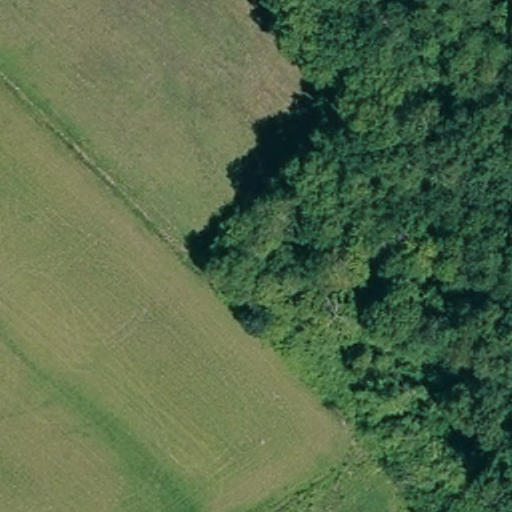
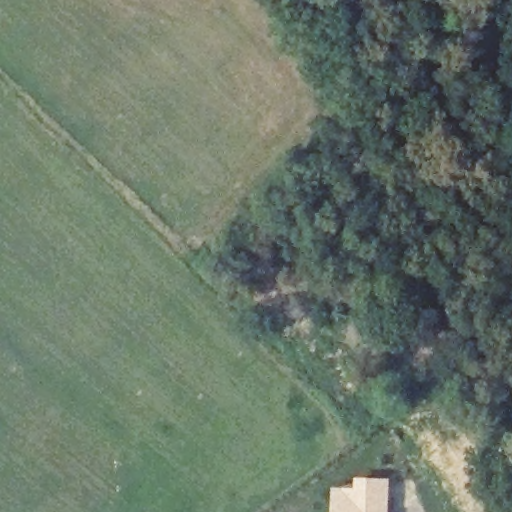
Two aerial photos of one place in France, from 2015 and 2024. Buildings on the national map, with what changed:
new [(331,488),(353,489),(355,477),(389,479),(389,512),(331,512),(331,488)]

